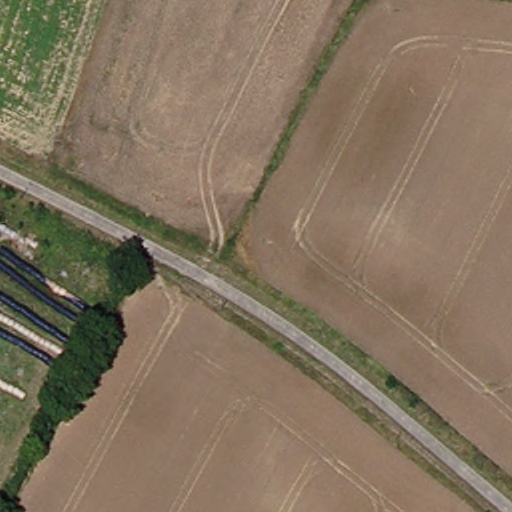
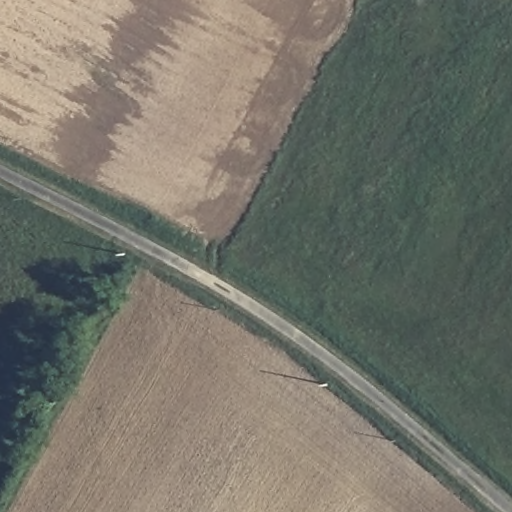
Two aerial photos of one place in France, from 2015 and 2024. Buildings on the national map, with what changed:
[]

